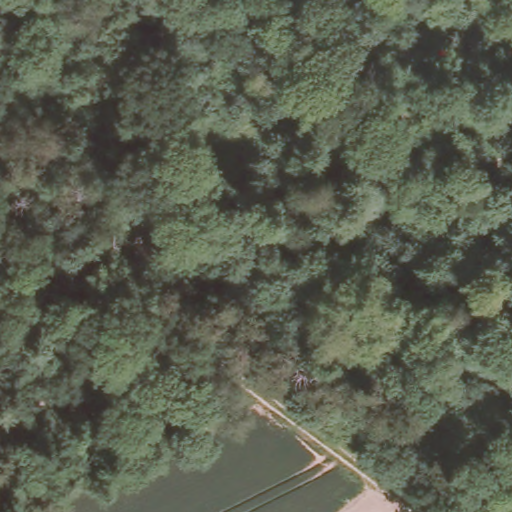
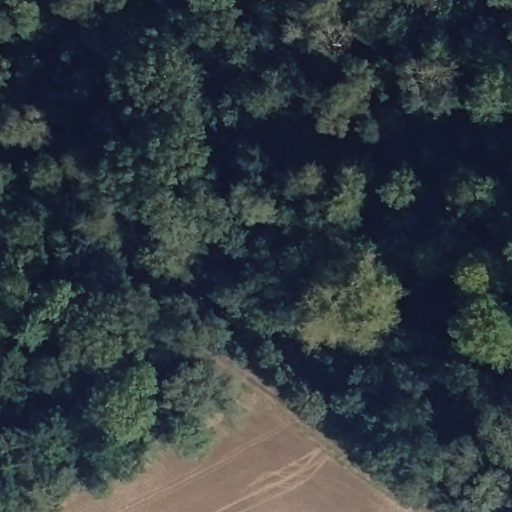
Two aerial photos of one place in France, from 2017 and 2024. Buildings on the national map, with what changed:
[]

